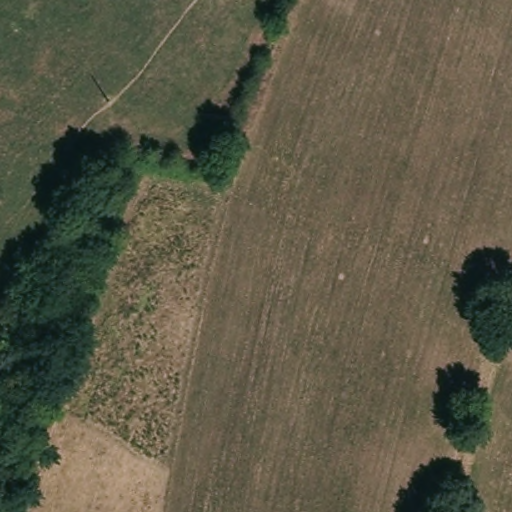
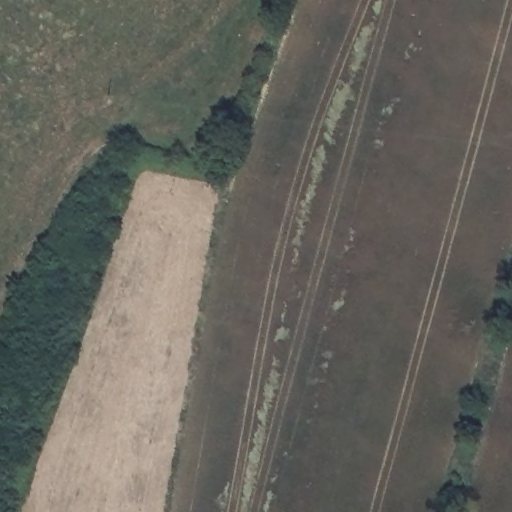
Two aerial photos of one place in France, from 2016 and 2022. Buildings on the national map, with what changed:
[]

